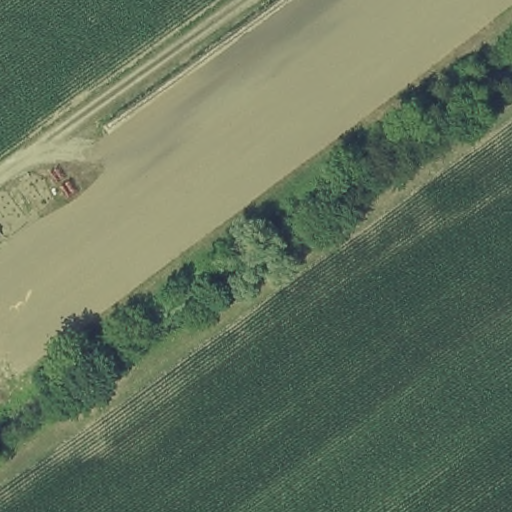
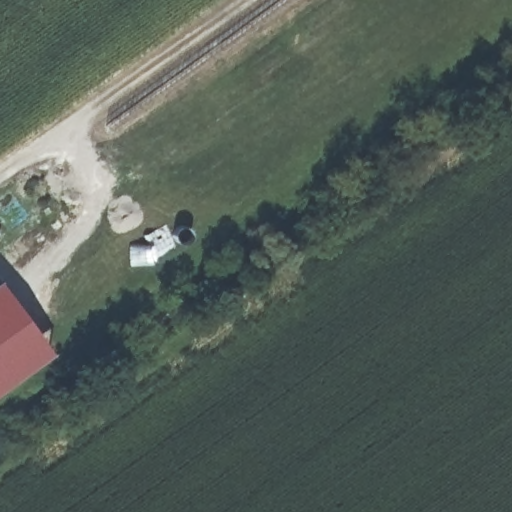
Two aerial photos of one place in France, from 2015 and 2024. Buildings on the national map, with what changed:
new [(0,237),(0,232),(2,235),(0,237)]
new [(0,389),(0,282),(50,350),(0,389)]

